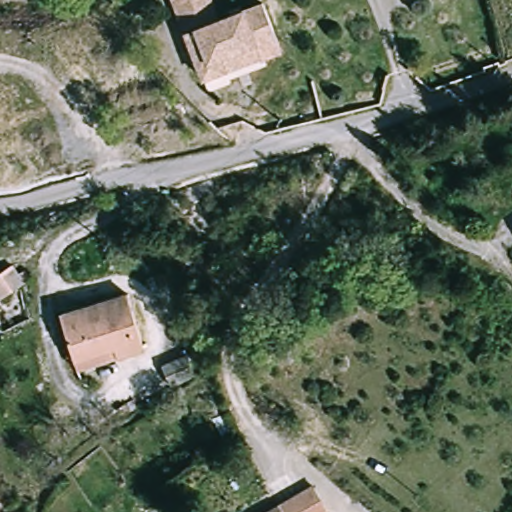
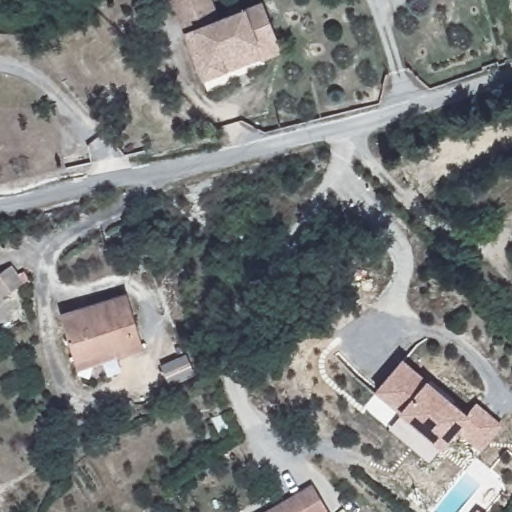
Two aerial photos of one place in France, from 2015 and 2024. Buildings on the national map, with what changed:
unchanged [(263,64),(261,62),(225,75),(202,83),(173,0),(210,0),(219,24),(264,7),(279,47),(282,57),(263,64)]
unchanged [(0,295),(0,273),(11,266),(21,281),(0,295)]
unchanged [(73,364),(60,314),(130,294),(147,354),(133,359),(77,378),(73,364)]
new [(405,359),(471,415),(478,405),(501,424),(482,447),(460,428),(443,447),(377,391),(405,359)]
unchanged [(286,504),(314,489),(326,512),(260,512),(284,499),(286,504)]

